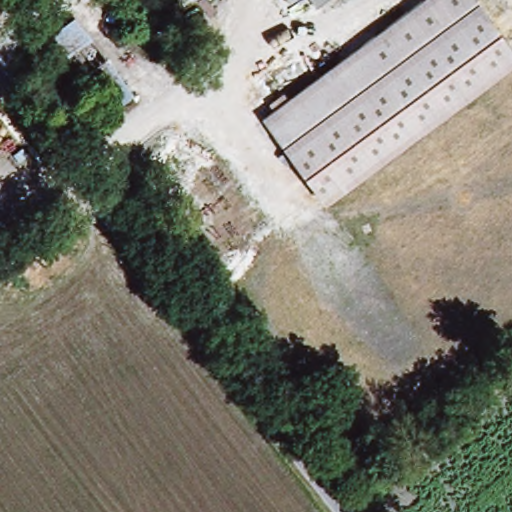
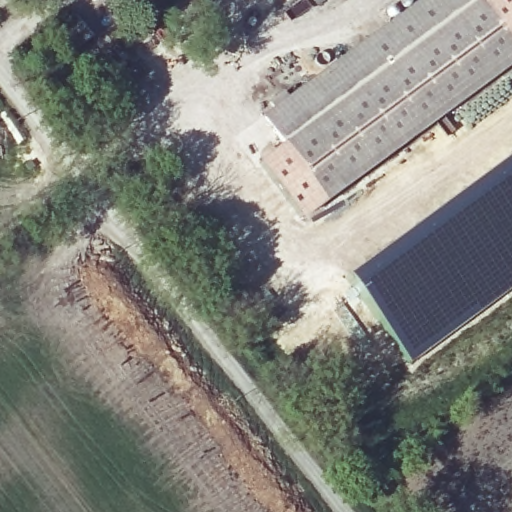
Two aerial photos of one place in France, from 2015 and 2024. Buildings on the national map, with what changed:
unchanged [(512,47),(512,67),(320,199),(262,112),(425,0),(480,0),(512,47)]
unchanged [(293,7),(288,0),(300,0),(293,7)]
unchanged [(316,10),(306,0),(330,0),(316,10)]
new [(511,157),(512,156),(512,159),(511,157)]
new [(373,270),(465,202),(512,165),(512,290),(411,364),(353,286),(373,270)]
new [(460,195),(465,202),(373,270),(368,262),(460,195)]

